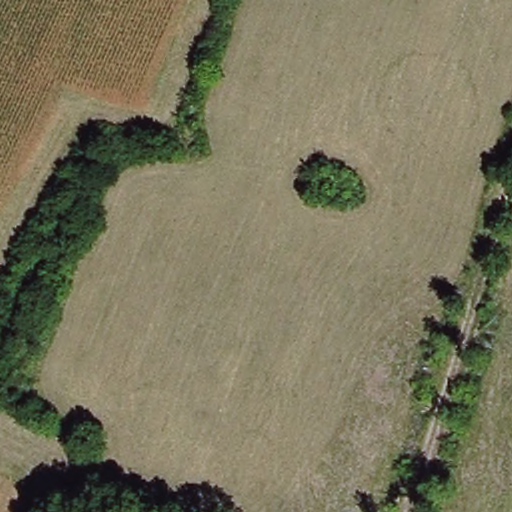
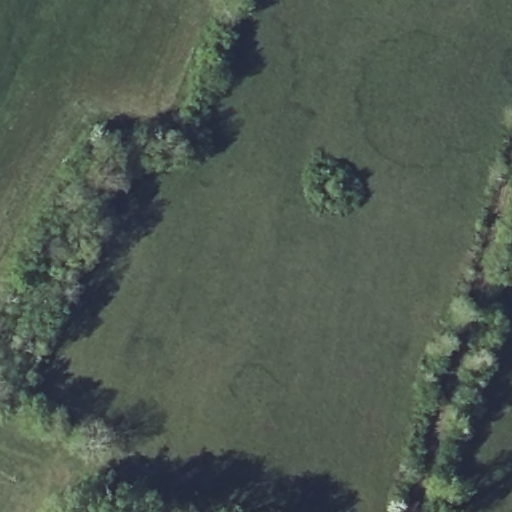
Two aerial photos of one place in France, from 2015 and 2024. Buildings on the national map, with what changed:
unchanged [(342,186),(348,182),(353,182),(360,186),(361,190),(361,195),(360,198),(353,204),(346,204),(339,201),(339,195),(342,186)]

